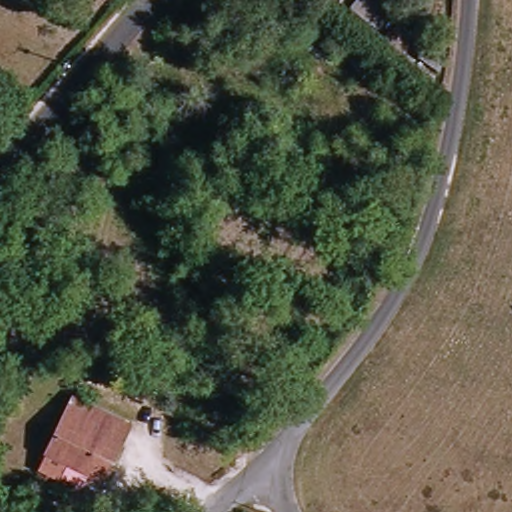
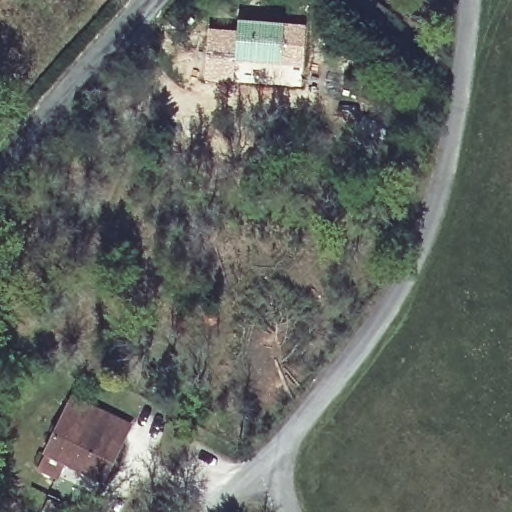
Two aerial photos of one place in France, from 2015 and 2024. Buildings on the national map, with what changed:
unchanged [(347,9),(354,0),(373,0),(389,15),(375,31),(347,9)]
new [(236,30),(237,20),(306,25),(302,88),(233,83),(236,30)]
new [(207,28),(236,30),(233,83),(202,82),(207,28)]
unchanged [(47,478),(57,454),(82,398),(141,423),(113,480),(84,467),(74,490),(47,478)]

